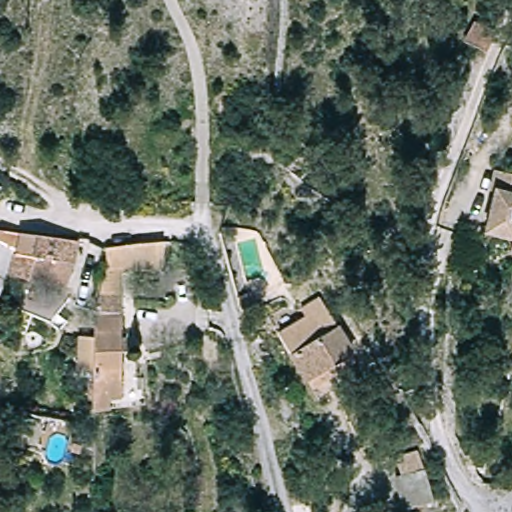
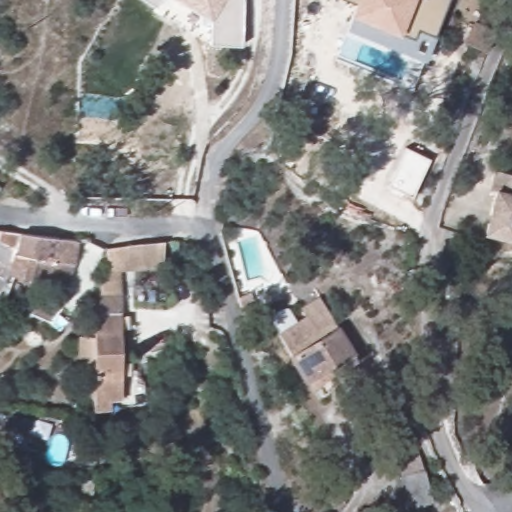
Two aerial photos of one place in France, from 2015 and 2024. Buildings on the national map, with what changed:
new [(139,0),(162,0),(155,10),(139,0)]
new [(208,46),(210,21),(177,0),(243,0),(241,47),(208,46)]
new [(438,34),(425,63),(345,31),(351,19),(347,16),(353,5),(341,0),(449,0),(435,32),(438,34)]
unchanged [(472,15),(494,25),(485,47),(462,37),(472,15)]
unchanged [(507,255),(510,243),(478,236),(489,190),(483,189),(487,171),(512,177),(512,256),(507,255)]
unchanged [(2,275),(0,282),(0,234),(14,235),(2,275)]
unchanged [(78,242),(79,242),(76,267),(36,262),(25,285),(2,275),(14,235),(78,242)]
unchanged [(87,400),(87,385),(87,364),(60,363),(63,331),(88,335),(90,246),(145,247),(145,275),(123,275),(120,386),(103,385),(103,400),(87,400)]
unchanged [(277,337),(304,321),(299,312),(318,301),(353,357),(305,387),(277,337)]
unchanged [(400,413),(383,382),(400,372),(417,403),(400,413)]
unchanged [(385,460),(416,453),(432,501),(402,512),(399,512),(385,460)]

